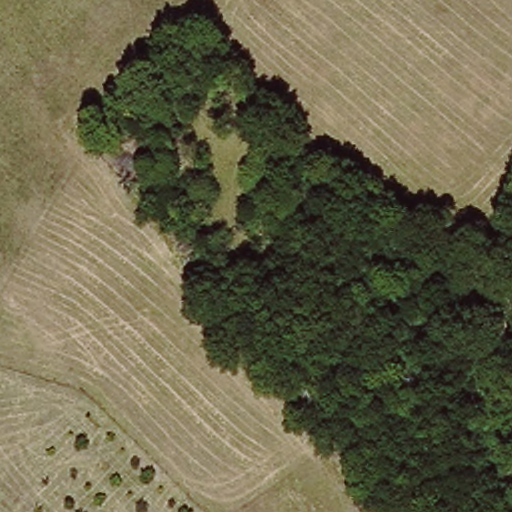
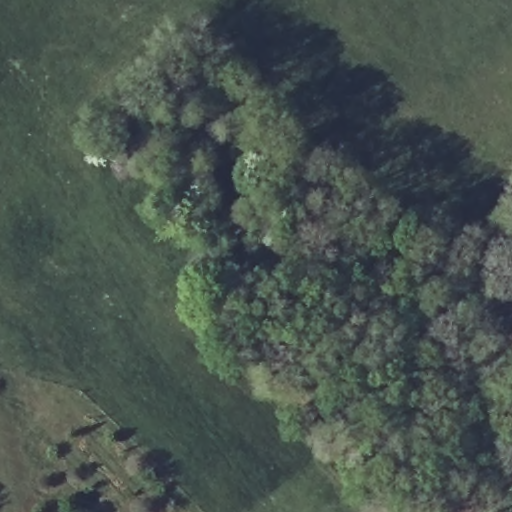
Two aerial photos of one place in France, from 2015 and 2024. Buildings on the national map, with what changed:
[]

